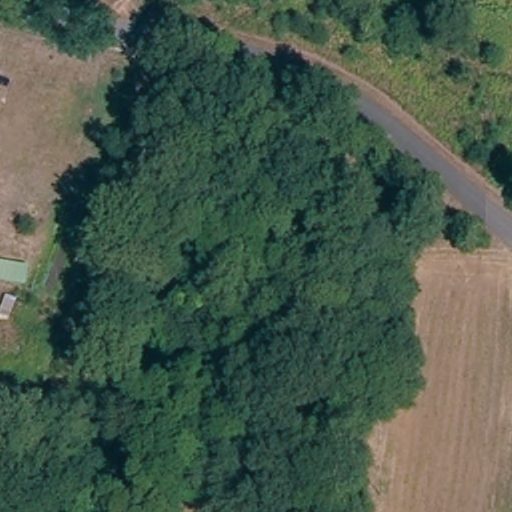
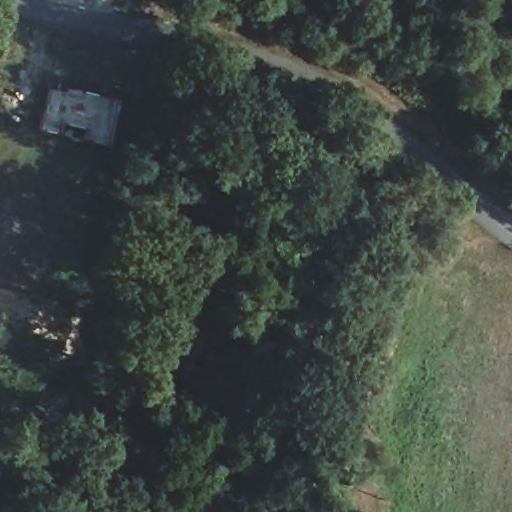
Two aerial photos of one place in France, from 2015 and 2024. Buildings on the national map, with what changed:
[]

